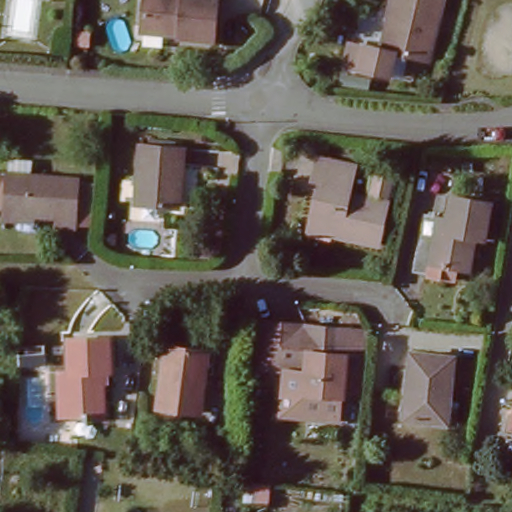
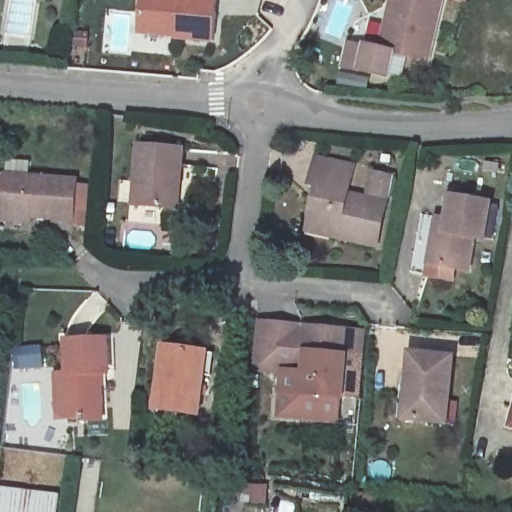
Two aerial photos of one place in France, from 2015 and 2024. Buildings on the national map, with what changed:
unchanged [(143,0),(203,0),(219,2),(214,45),(176,40),(138,35),(139,27),(143,0)]
unchanged [(376,47),(388,0),(439,0),(422,60),(376,47)]
unchanged [(178,149),(174,207),(132,205),(134,146),(178,149)]
unchanged [(302,224),(314,162),(341,168),(336,194),(376,202),(367,246),(324,238),(301,234),(302,224)]
unchanged [(69,180),(66,229),(48,227),(48,220),(0,218),(0,175),(69,180)]
unchanged [(485,199),(480,236),(468,234),(464,267),(424,261),(428,235),(438,236),(444,191),(485,199)]
unchanged [(326,400),(326,414),(274,408),(273,366),(293,367),(296,324),(346,325),(344,354),(343,399),(326,400)]
unchanged [(45,372),(50,373),(57,373),(60,339),(111,344),(108,377),(98,377),(94,421),(47,417),(41,417),(45,372)]
unchanged [(202,352),(198,415),(151,411),(156,349),(202,352)]
unchanged [(447,355),(446,422),(403,420),(404,353),(447,355)]
new [(61,495),(59,512),(0,512),(0,488),(61,495)]

